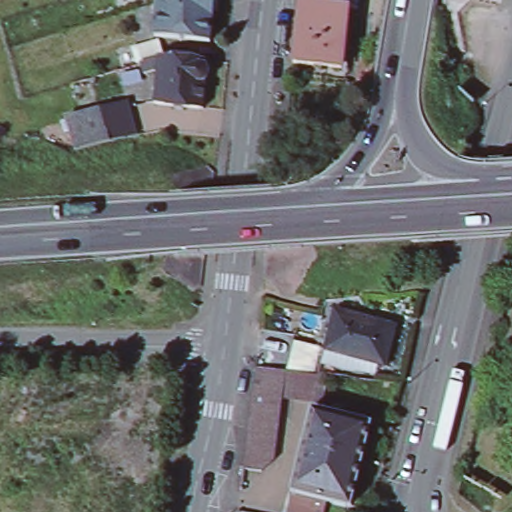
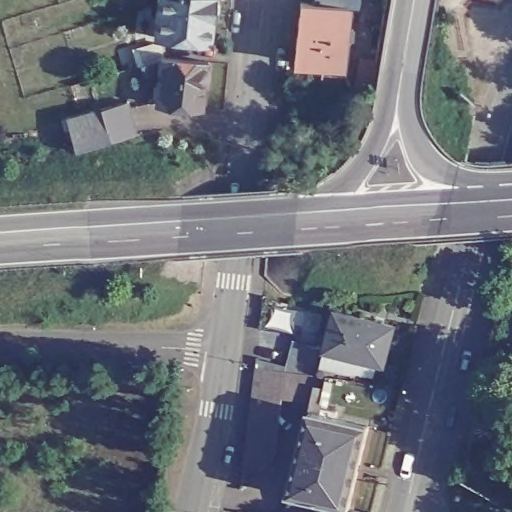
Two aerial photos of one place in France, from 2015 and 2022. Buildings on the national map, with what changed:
unchanged [(210,11),(205,14),(202,43),(147,37),(150,3),(151,0),(210,0),(210,1),(210,11)]
unchanged [(302,18),(303,2),(317,3),(317,0),(362,0),(362,8),(352,7),(350,23),(345,68),(297,64),(302,18)]
unchanged [(200,66),(202,68),(202,76),(199,78),(195,109),(147,104),(150,69),(139,73),(134,64),(130,54),(152,44),(158,56),(200,61),(200,66)]
unchanged [(65,121),(126,105),(132,125),(135,138),(75,155),(67,125),(65,121)]
unchanged [(323,350),(332,310),(336,311),(393,325),(383,366),(352,358),(348,376),(325,373),(318,372),(323,350)]
unchanged [(285,365),(292,340),(317,346),(311,371),(304,401),(284,399),(274,460),(264,471),(244,467),(255,364),(284,368),(285,365)]
unchanged [(312,415),(317,393),(327,395),(322,417),(370,428),(351,511),(327,505),(325,512),(289,512),(292,497),(312,415)]

